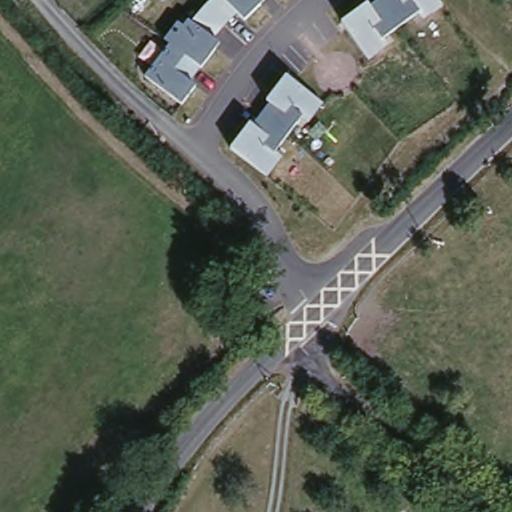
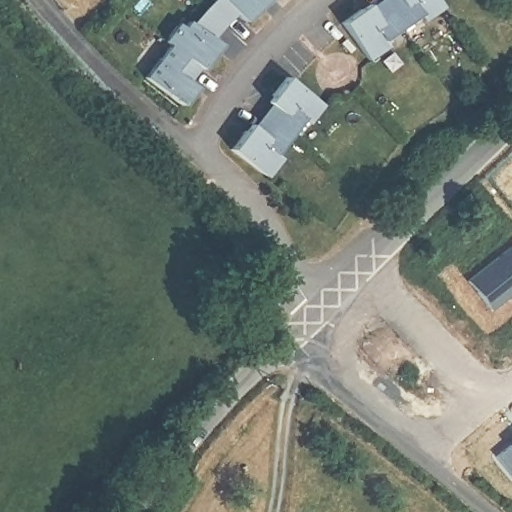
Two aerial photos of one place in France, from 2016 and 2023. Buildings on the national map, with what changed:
unchanged [(143,77),(169,46),(162,41),(178,21),(183,25),(187,21),(207,0),(264,0),(243,22),(235,15),(212,38),(219,43),(200,69),(189,82),(195,86),(181,103),(143,77)]
unchanged [(340,22),(367,4),(372,0),(438,0),(442,7),(422,23),(418,14),(381,40),(388,49),(367,62),(340,22)]
unchanged [(249,123),(266,102),(286,77),(321,105),(307,127),(299,120),(274,155),(281,160),(268,178),(229,152),(249,123)]
new [(512,295),(491,312),(469,283),(512,247),(512,295)]

